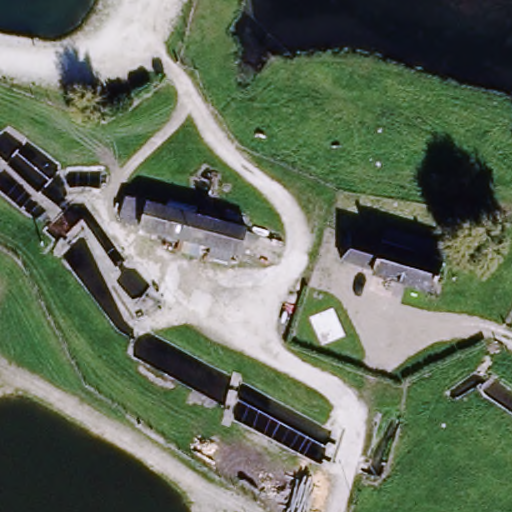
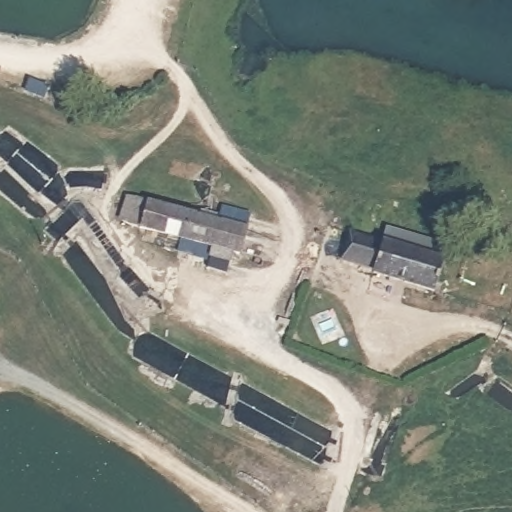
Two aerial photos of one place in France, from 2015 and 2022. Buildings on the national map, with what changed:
unchanged [(211,251),(139,229),(117,222),(125,197),(146,203),(246,232),(240,258),(231,256),(229,265),(209,260),(211,251)]
unchanged [(433,294),(374,275),(376,270),(345,259),(353,236),(384,246),(390,230),(448,248),(433,294)]

